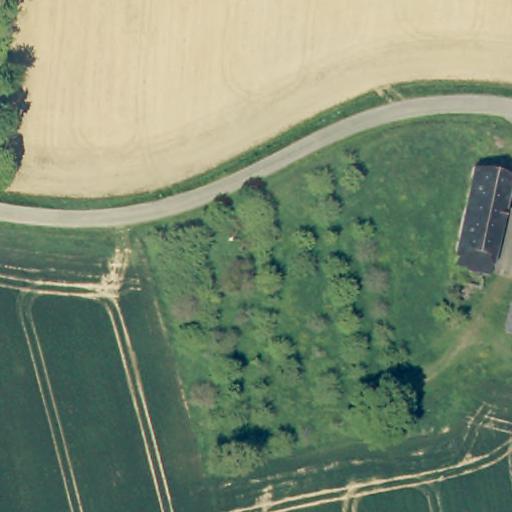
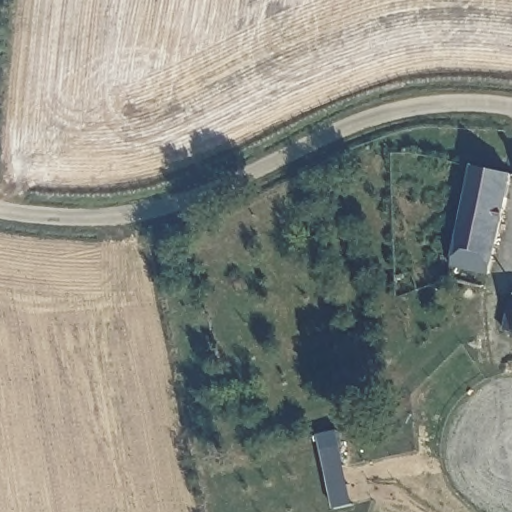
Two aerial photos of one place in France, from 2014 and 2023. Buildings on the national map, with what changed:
unchanged [(512,175),(512,179),(488,272),(453,264),(473,165),(512,175)]
unchanged [(505,299),(512,300),(512,332),(498,330),(505,299)]
new [(316,430),(334,426),(350,505),(331,508),(316,430)]

